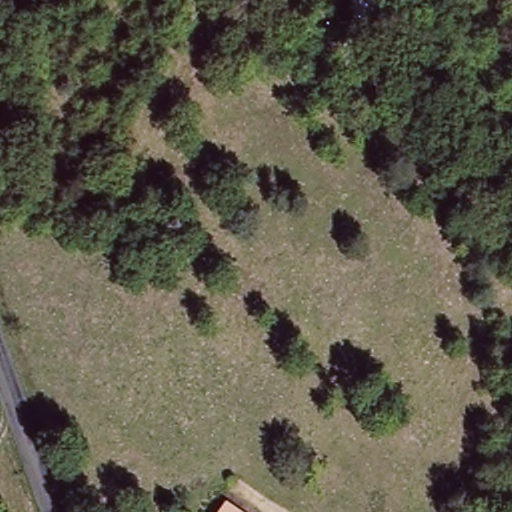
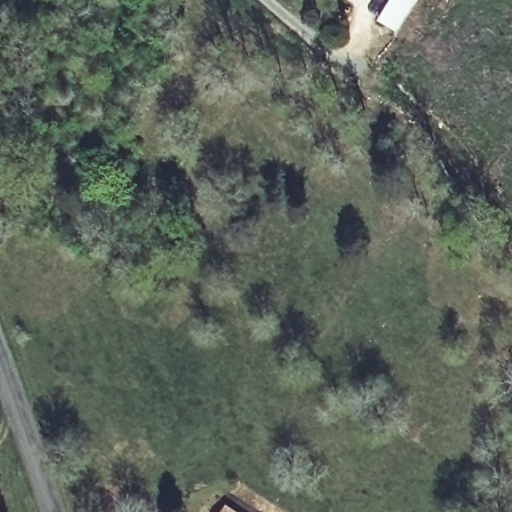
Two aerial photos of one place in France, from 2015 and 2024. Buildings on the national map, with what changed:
unchanged [(226,501),(242,512),(218,512),(226,501)]

